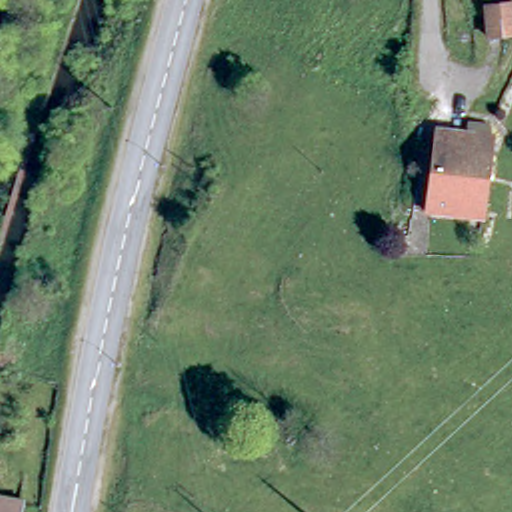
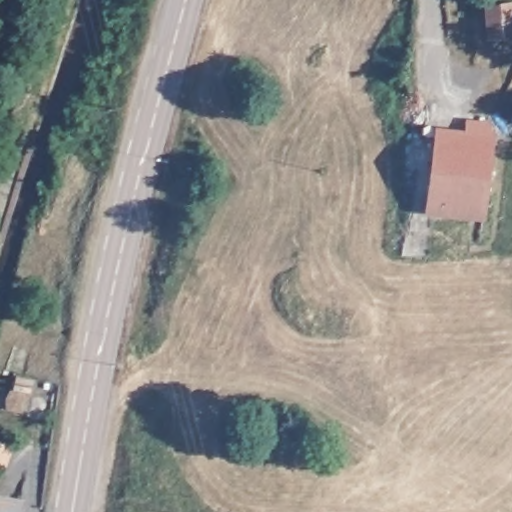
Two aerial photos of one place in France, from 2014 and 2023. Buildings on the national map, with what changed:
unchanged [(487,33),(479,0),(512,0),(512,2),(512,32),(487,33)]
unchanged [(477,224),(419,217),(429,135),(458,136),(460,120),(483,116),(483,139),(487,139),(477,224)]
unchanged [(26,512),(0,512),(0,495),(29,500),(26,512)]

